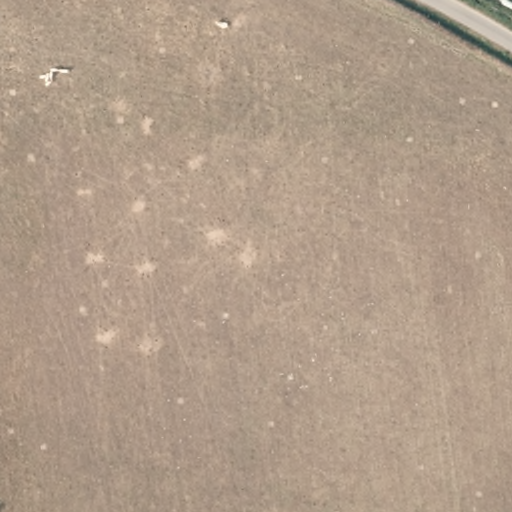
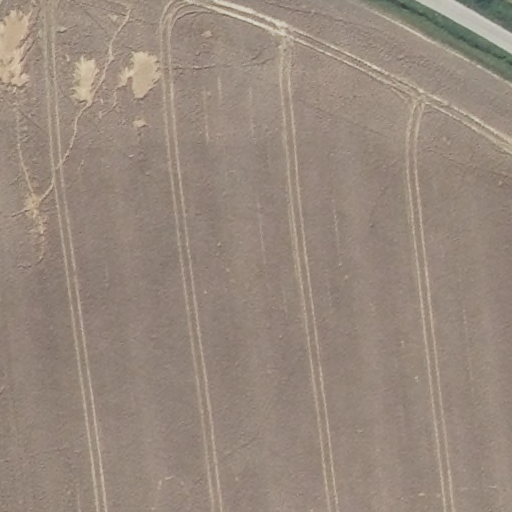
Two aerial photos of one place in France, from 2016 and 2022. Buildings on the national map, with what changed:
[]

